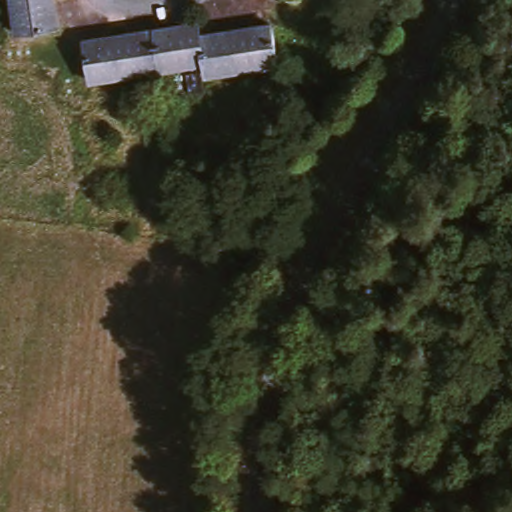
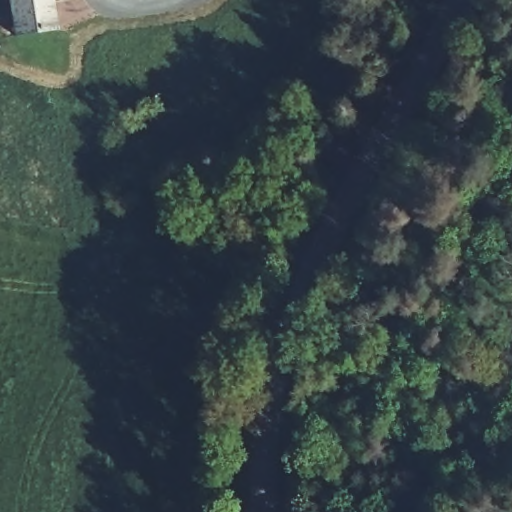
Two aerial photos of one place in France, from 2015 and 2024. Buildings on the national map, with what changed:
unchanged [(10,34),(5,0),(51,0),(55,27),(10,34)]
demolished [(197,33),(268,22),(275,65),(203,76),(201,65),(88,82),(82,41),(195,23),(197,33)]

